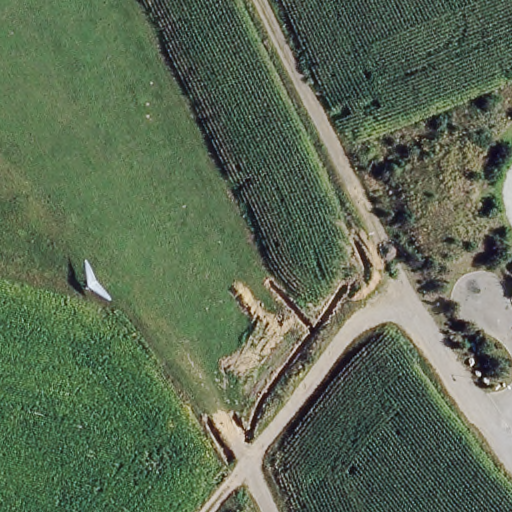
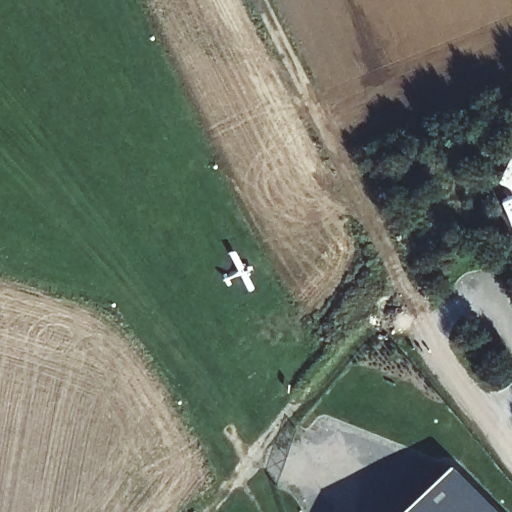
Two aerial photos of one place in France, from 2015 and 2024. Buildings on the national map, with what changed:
new [(454,474),(495,512),(417,512),(454,474)]

